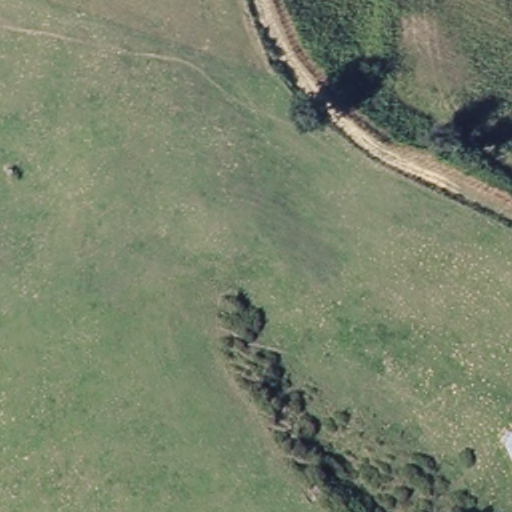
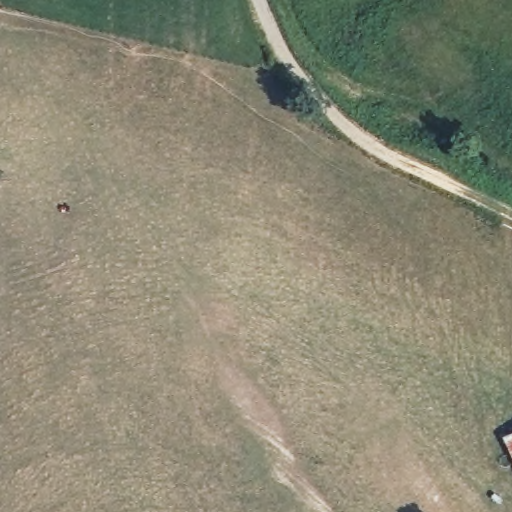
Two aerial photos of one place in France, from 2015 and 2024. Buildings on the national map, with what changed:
unchanged [(512,435),(512,469),(498,442),(512,435)]

